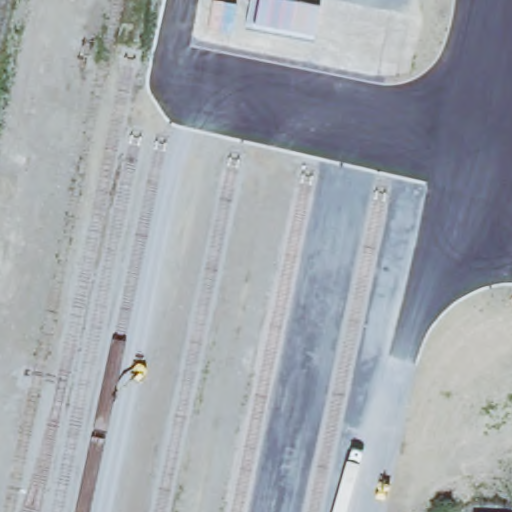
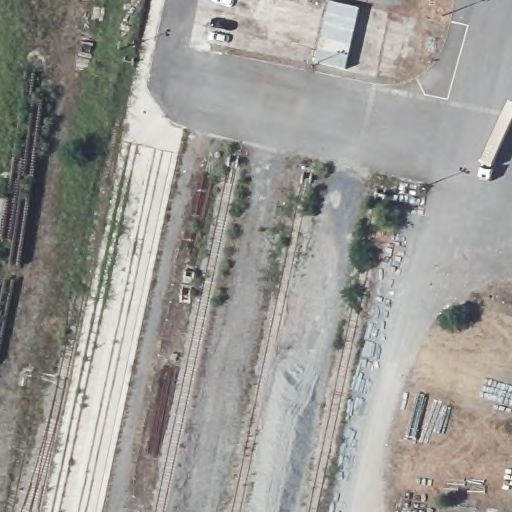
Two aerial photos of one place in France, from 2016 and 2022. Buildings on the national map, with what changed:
unchanged [(243,32),(250,0),(284,0),(317,7),(310,44),(243,32)]

